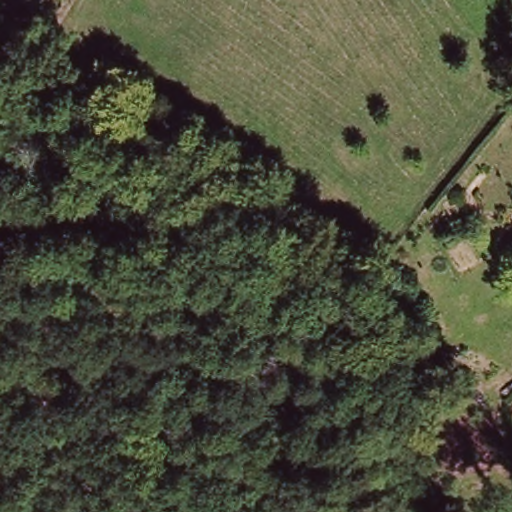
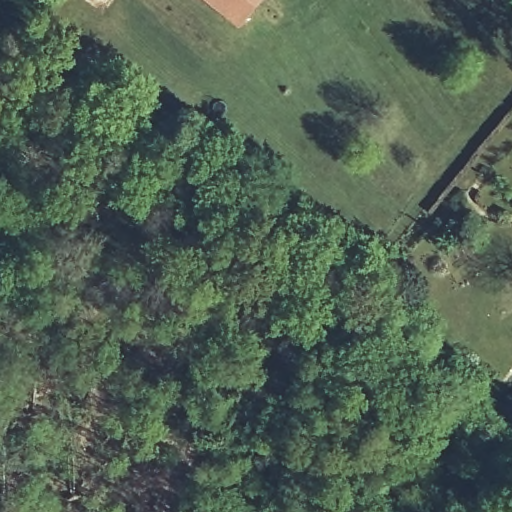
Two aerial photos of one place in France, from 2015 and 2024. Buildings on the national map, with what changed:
new [(239,25),(207,0),(260,0),(239,25)]

